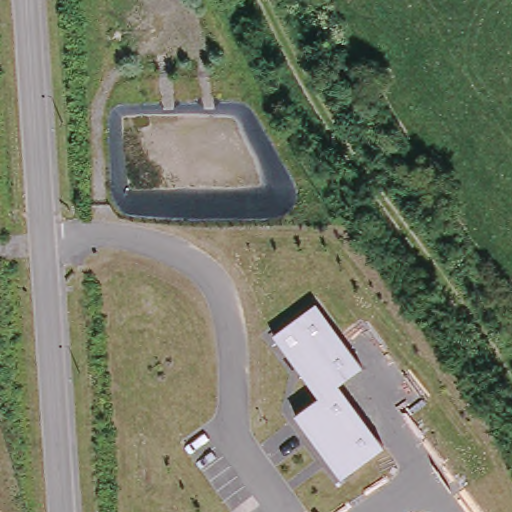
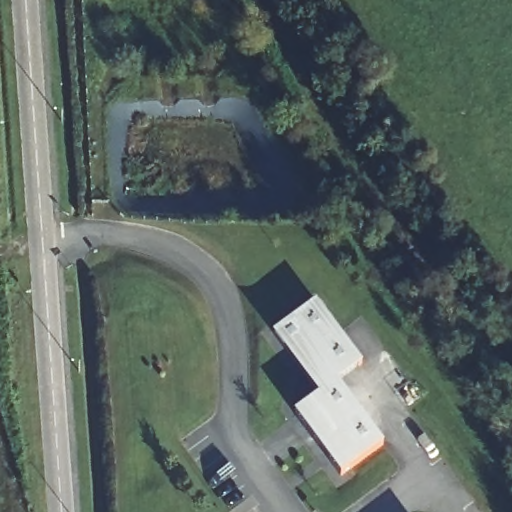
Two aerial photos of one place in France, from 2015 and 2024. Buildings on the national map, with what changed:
unchanged [(293,414),(317,395),(271,333),(317,298),(365,364),(340,381),(385,442),(338,476),(293,414)]

